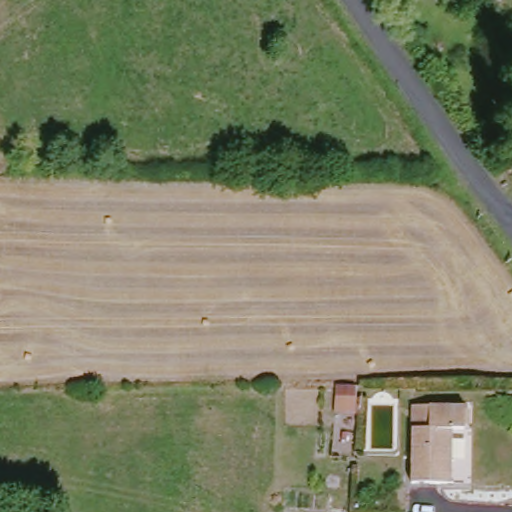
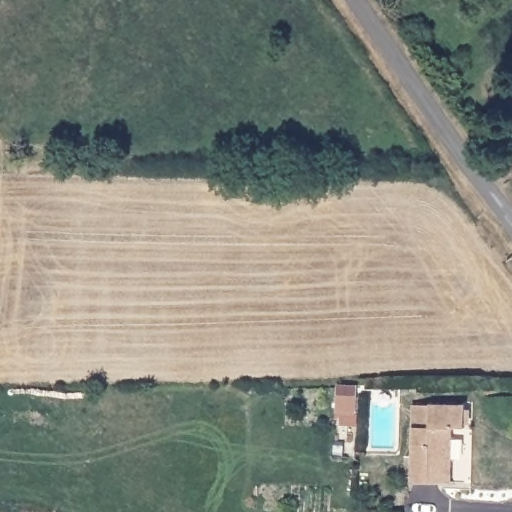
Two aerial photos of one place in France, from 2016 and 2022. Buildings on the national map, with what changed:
unchanged [(460,401),(460,426),(447,427),(448,478),(408,478),(408,424),(428,423),(427,401),(460,401)]

